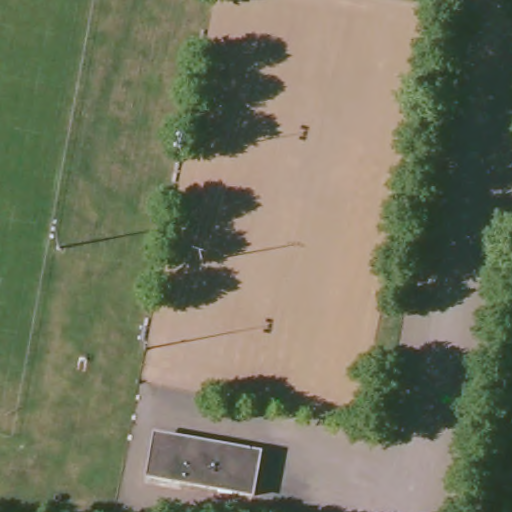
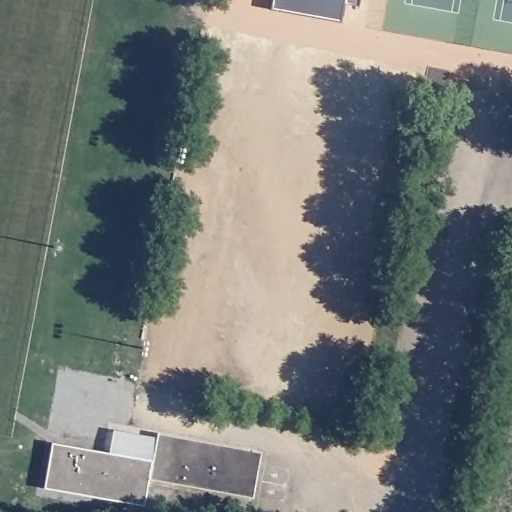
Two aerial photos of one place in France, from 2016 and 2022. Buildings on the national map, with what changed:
new [(345,3),(342,22),(272,9),(273,0),(362,0),(361,6),(345,3)]
unchanged [(245,456),(263,459),(255,493),(153,474),(157,458),(162,434),(197,440),(247,449),(245,456)]
new [(46,488),(54,444),(155,461),(153,474),(145,506),(46,488)]

